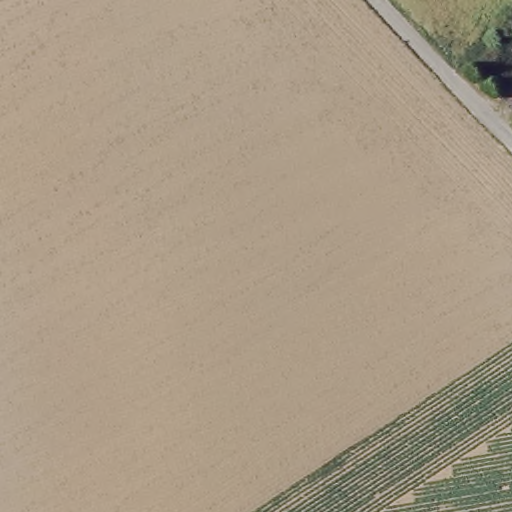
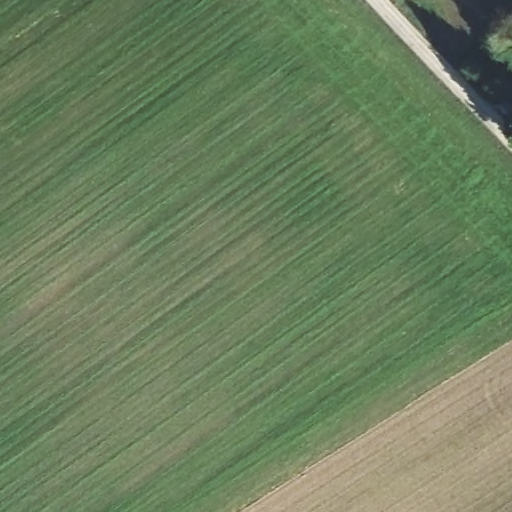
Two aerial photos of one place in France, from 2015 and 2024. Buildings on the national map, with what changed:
[]

